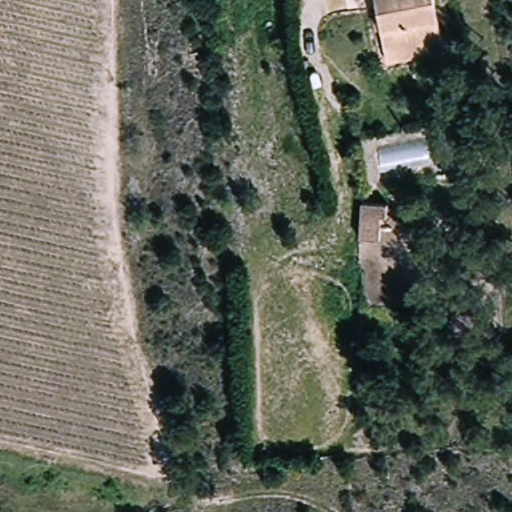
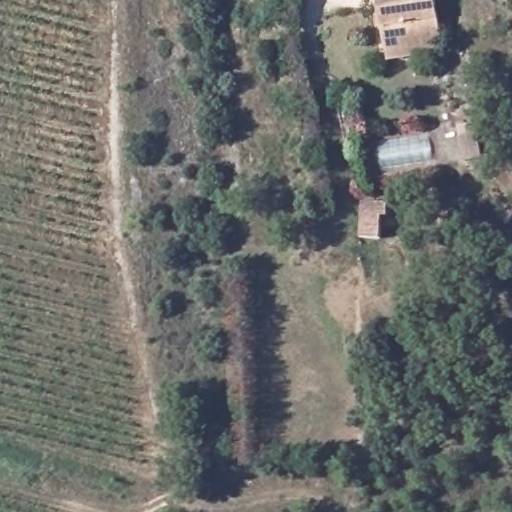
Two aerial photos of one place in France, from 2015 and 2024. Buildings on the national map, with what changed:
unchanged [(375,0),(432,0),(438,43),(383,51),(375,0)]
unchanged [(485,158),(468,161),(462,125),(479,122),(485,158)]
unchanged [(391,201),(390,214),(385,213),(384,237),(364,236),(365,200),(391,201)]

